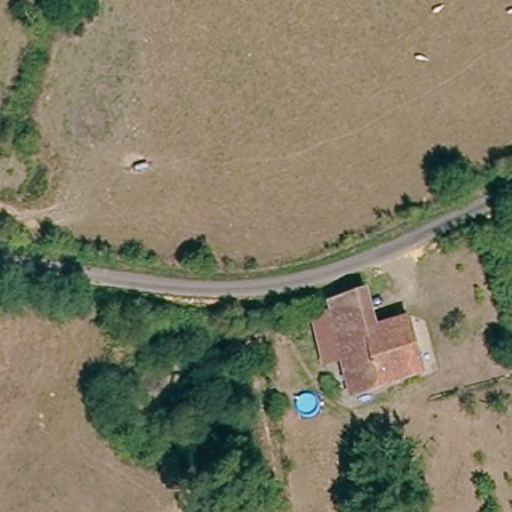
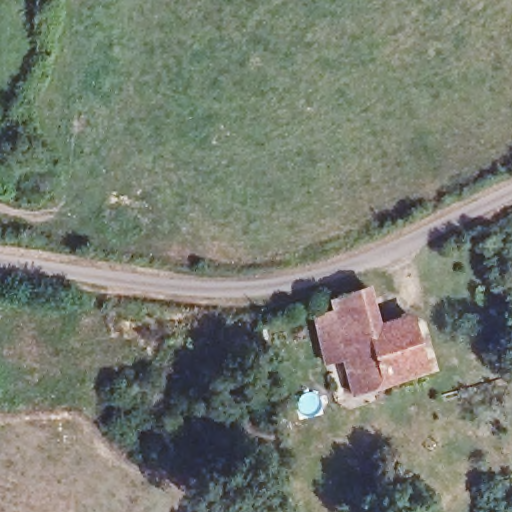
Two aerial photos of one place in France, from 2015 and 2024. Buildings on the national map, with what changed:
unchanged [(338,333),(333,313),(330,300),(367,290),(376,322),(338,333)]
unchanged [(352,396),(342,360),(325,365),(320,348),(312,319),(333,313),(338,333),(376,322),(408,313),(422,376),(357,394),(352,396)]

